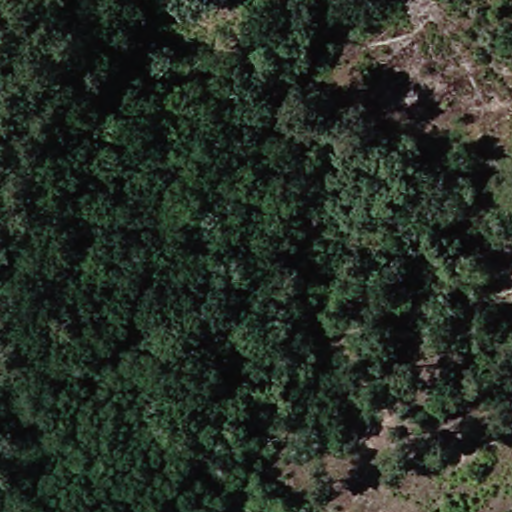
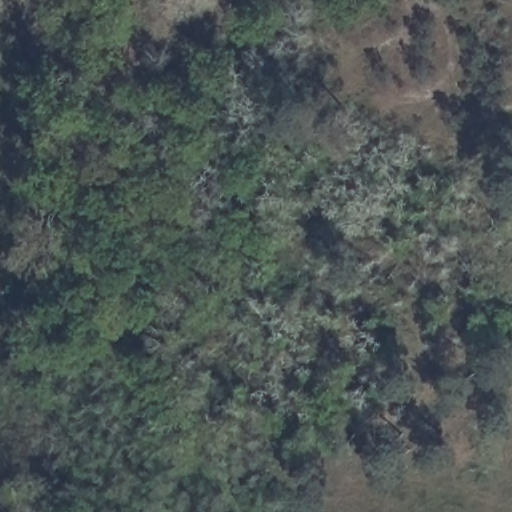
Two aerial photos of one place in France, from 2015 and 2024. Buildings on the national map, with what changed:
[]

